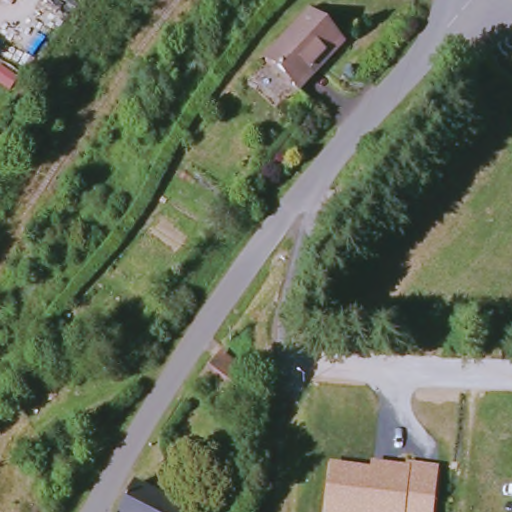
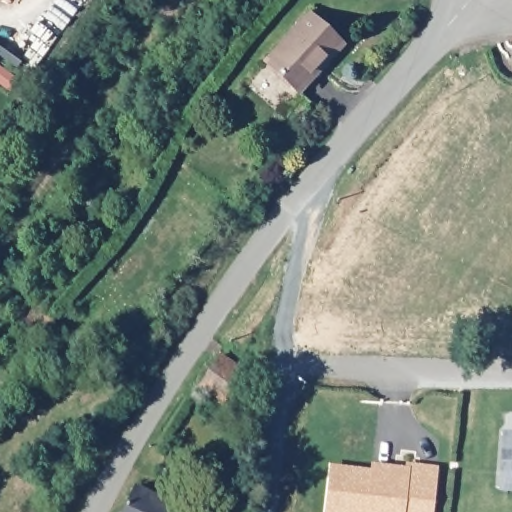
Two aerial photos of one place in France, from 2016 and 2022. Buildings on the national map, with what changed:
unchanged [(347,48),(333,65),(328,62),(300,95),(271,71),(315,20),(347,48)]
unchanged [(13,89),(0,79),(0,68),(2,64),(22,77),(13,89)]
unchanged [(262,380),(240,414),(203,389),(225,356),(262,380)]
unchanged [(178,423),(193,432),(185,447),(170,438),(178,423)]
new [(502,430),(512,431),(512,485),(498,484),(502,430)]
unchanged [(373,475),(374,465),(440,470),(437,512),(331,512),(335,470),(373,475)]
unchanged [(128,512),(138,490),(172,506),(181,491),(212,508),(210,512),(128,512)]

